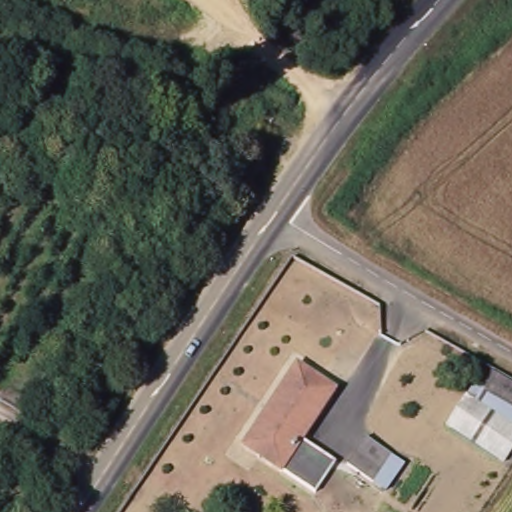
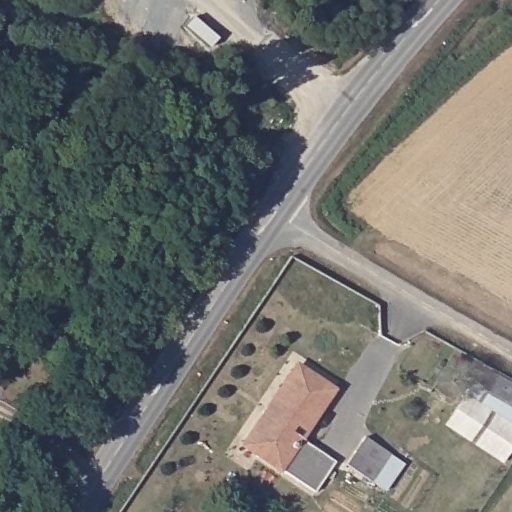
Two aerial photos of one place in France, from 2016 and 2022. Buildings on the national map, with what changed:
unchanged [(300,365),(341,392),(307,441),(340,463),(320,492),(247,443),(300,365)]
unchanged [(489,368),(512,380),(512,399),(482,383),(489,368)]
unchanged [(464,394),(512,423),(512,445),(506,457),(446,424),(464,394)]
unchanged [(375,441),(400,458),(381,484),(355,468),(375,441)]

